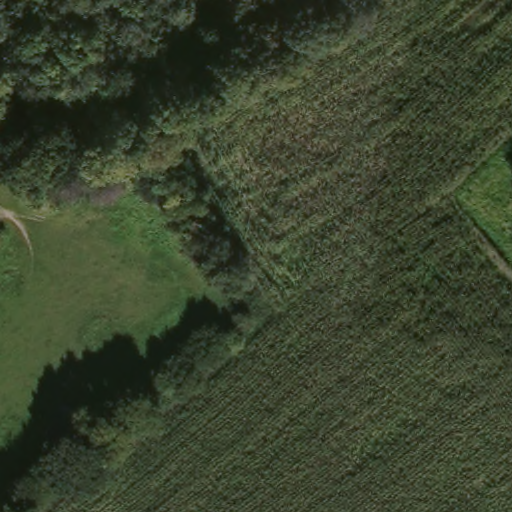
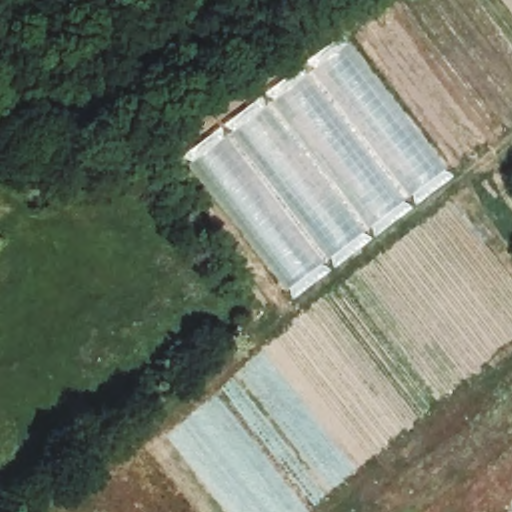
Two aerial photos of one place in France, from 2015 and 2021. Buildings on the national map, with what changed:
new [(194,159),(346,45),(445,172),(292,290),(194,159)]

